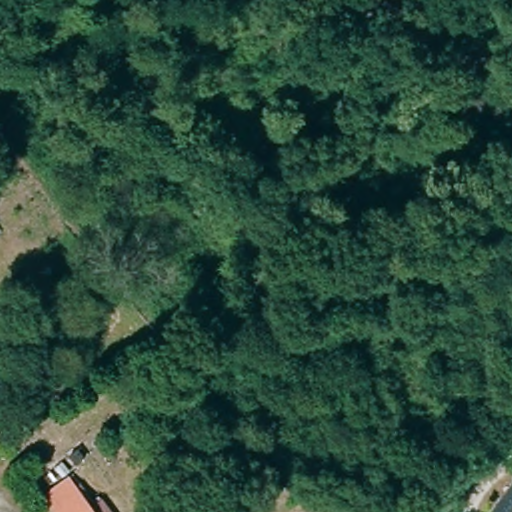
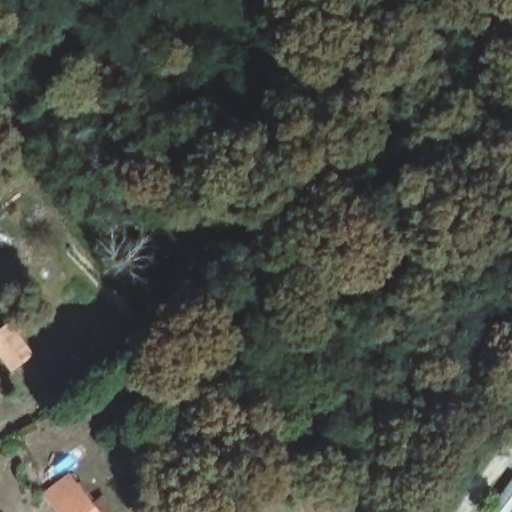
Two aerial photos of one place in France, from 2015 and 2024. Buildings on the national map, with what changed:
new [(11,370),(0,355),(0,328),(9,321),(33,355),(11,370)]
unchanged [(50,491),(79,470),(96,495),(105,488),(121,512),(65,512),(50,491)]

